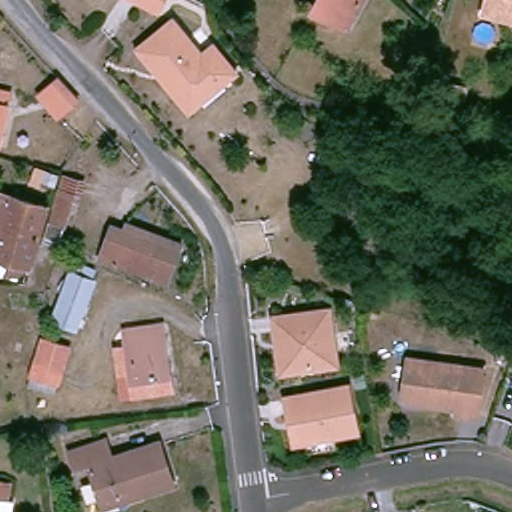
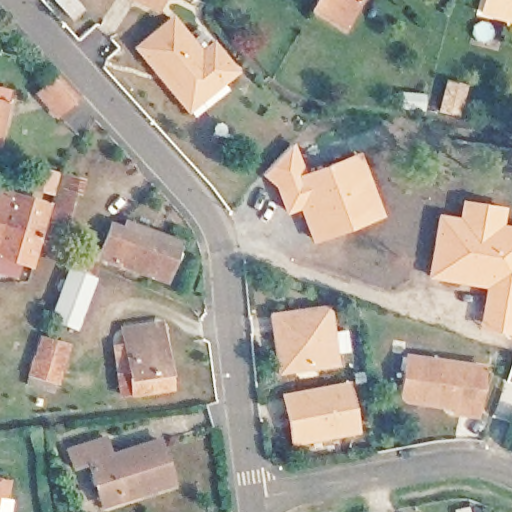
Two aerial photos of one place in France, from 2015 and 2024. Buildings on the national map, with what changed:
unchanged [(153,18),(144,13),(116,0),(161,0),(153,18)]
unchanged [(349,27),(316,9),(321,0),(364,0),(349,27)]
unchanged [(482,0),(512,0),(512,19),(479,10),(482,0)]
unchanged [(178,116),(149,75),(132,50),(170,23),(196,61),(208,52),(225,76),(228,81),(214,91),(212,93),(178,116)]
unchanged [(62,76),(82,99),(64,115),(44,92),(62,76)]
new [(445,78),(468,84),(460,116),(437,111),(445,78)]
new [(398,90),(426,93),(423,112),(396,108),(398,90)]
unchanged [(0,141),(0,93),(12,95),(0,141)]
new [(293,142),(304,170),(360,150),(385,217),(313,245),(298,210),(286,215),(273,187),(260,173),(293,142)]
unchanged [(68,197),(54,243),(41,238),(56,192),(68,197)]
unchanged [(39,208),(31,234),(23,263),(0,257),(0,196),(39,208)]
new [(456,215),(460,198),(506,206),(503,223),(512,225),(512,335),(478,328),(483,288),(425,277),(436,212),(456,215)]
unchanged [(177,252),(167,281),(102,257),(113,227),(177,252)]
unchanged [(91,283),(74,330),(51,321),(68,273),(91,283)]
unchanged [(275,336),(273,323),(326,314),(332,356),(316,359),(280,365),(275,336)]
unchanged [(170,387),(136,391),(133,365),(117,367),(114,344),(129,342),(127,327),(162,323),(170,387)]
unchanged [(38,334),(70,344),(57,387),(23,374),(38,334)]
unchanged [(483,365),(477,413),(456,410),(455,406),(437,404),(437,398),(426,396),(425,403),(408,400),(404,390),(409,355),(483,365)]
unchanged [(292,442),(284,398),(345,387),(353,431),(292,442)]
unchanged [(110,456),(155,440),(168,480),(100,503),(86,464),(71,467),(65,450),(103,437),(110,456)]
unchanged [(9,487),(5,512),(0,512),(0,486),(9,487)]

